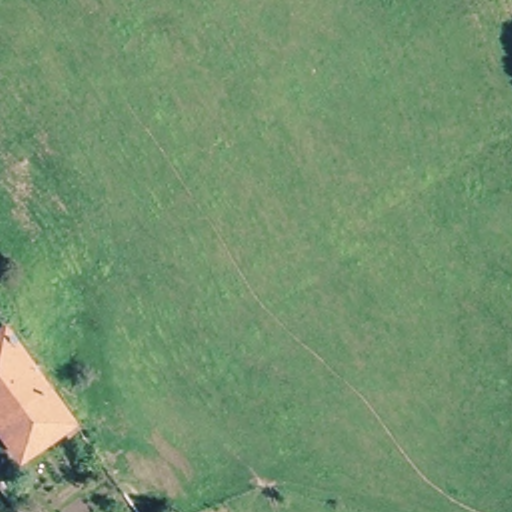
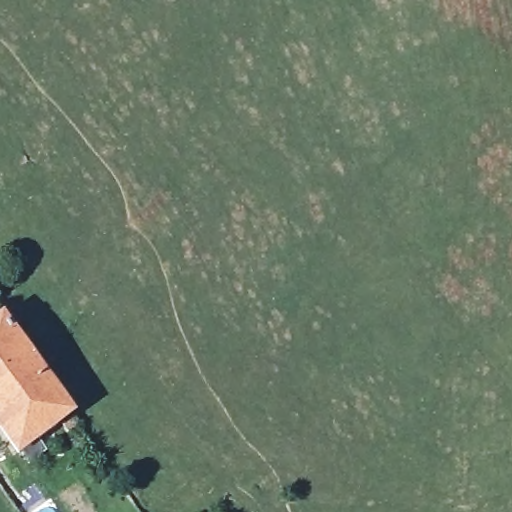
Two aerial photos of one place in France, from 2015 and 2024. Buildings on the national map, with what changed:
unchanged [(17,453),(8,441),(0,431),(0,321),(66,408),(70,416),(17,453)]

